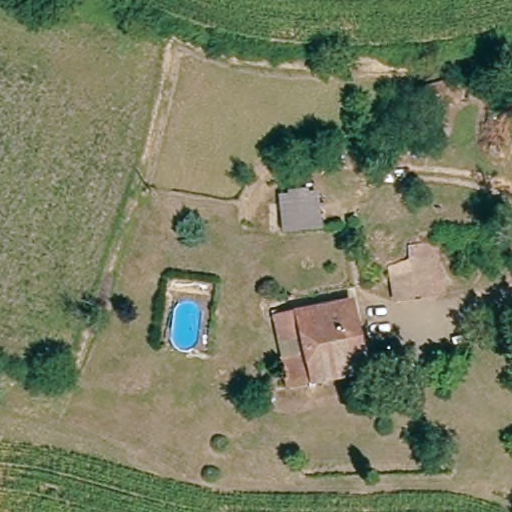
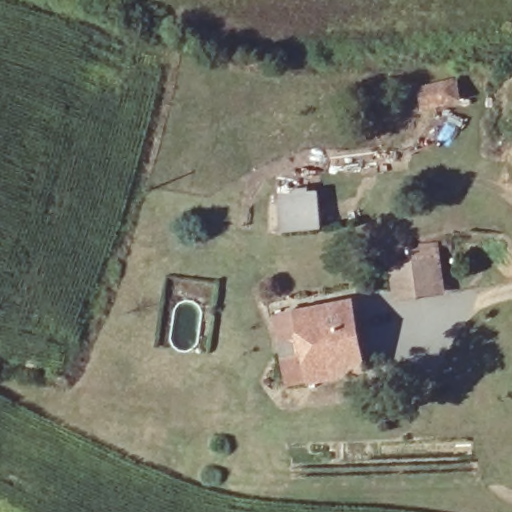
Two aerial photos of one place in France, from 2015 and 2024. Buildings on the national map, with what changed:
unchanged [(397,90),(460,83),(463,104),(400,111),(397,90)]
unchanged [(283,196),(319,194),(321,226),(284,229),(283,196)]
unchanged [(413,299),(411,287),(407,261),(414,260),(446,254),(452,280),(455,291),(413,299)]
unchanged [(367,376),(289,390),(281,354),(273,319),(292,315),(349,304),(367,376)]

